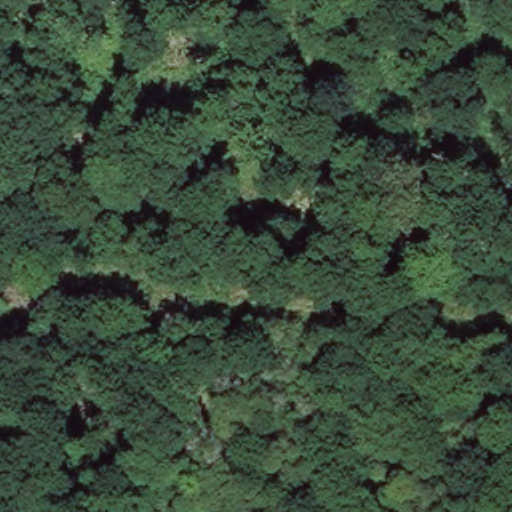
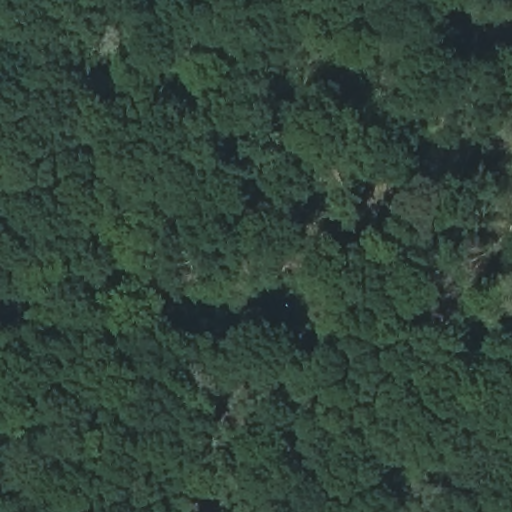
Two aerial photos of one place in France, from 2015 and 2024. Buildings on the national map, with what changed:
[]

